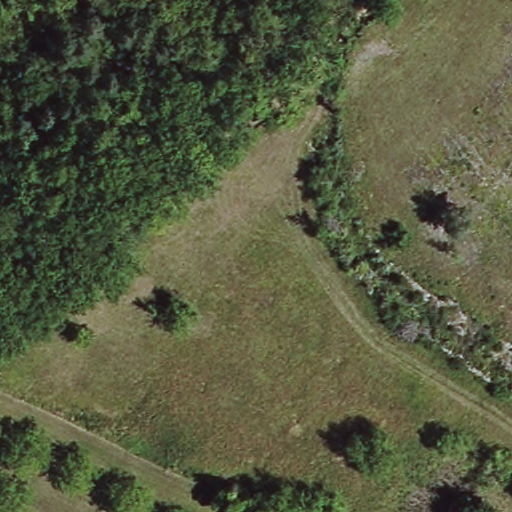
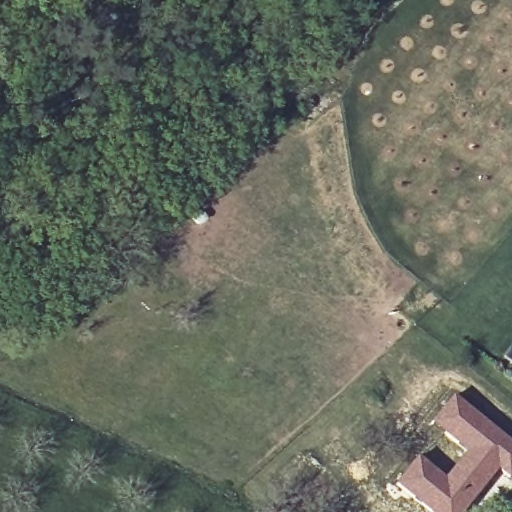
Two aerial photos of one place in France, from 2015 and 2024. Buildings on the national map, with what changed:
new [(512,363),(502,356),(512,343),(512,363)]
new [(443,477),(463,453),(430,422),(452,394),(512,441),(512,476),(510,479),(499,471),(464,512),(431,512),(395,482),(417,456),(443,477)]

